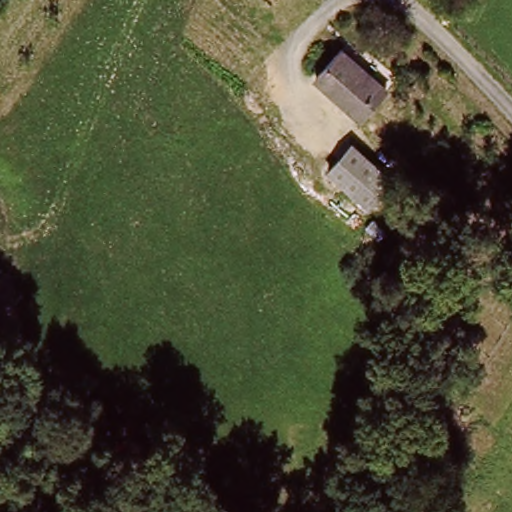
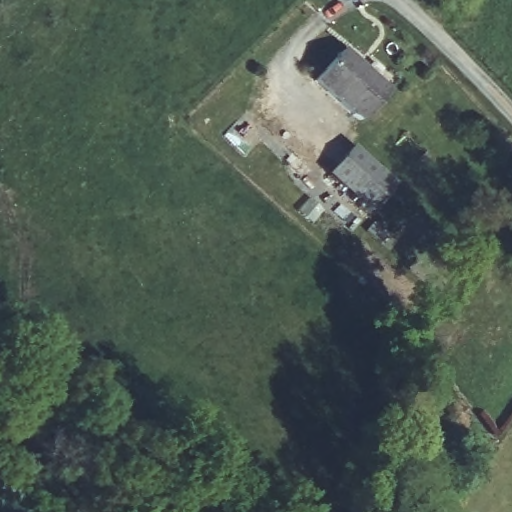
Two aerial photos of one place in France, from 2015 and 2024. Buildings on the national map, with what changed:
unchanged [(365,115),(323,80),(350,48),(394,83),(365,115)]
unchanged [(402,180),(379,207),(334,170),(358,144),(400,178),(402,180)]

